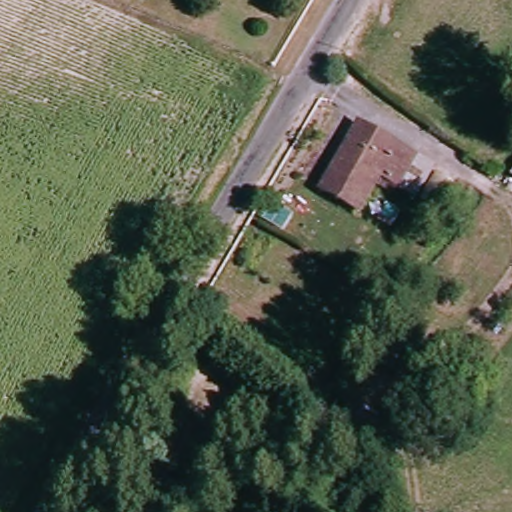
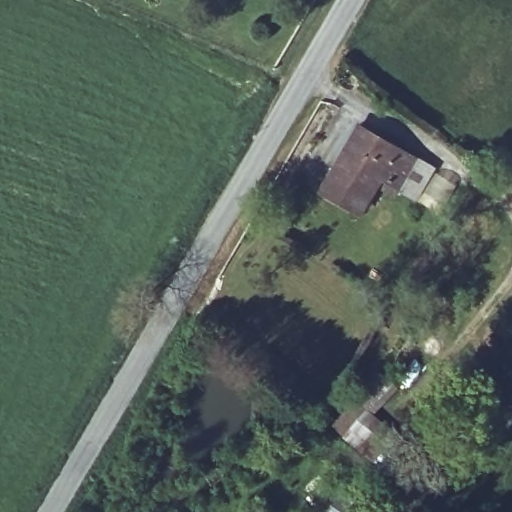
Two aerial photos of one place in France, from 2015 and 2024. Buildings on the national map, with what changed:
unchanged [(359,127),(414,160),(397,188),(380,177),(357,215),(320,193),(359,127)]
unchanged [(377,419),(400,438),(381,457),(337,426),(382,375),(398,390),(377,419)]

